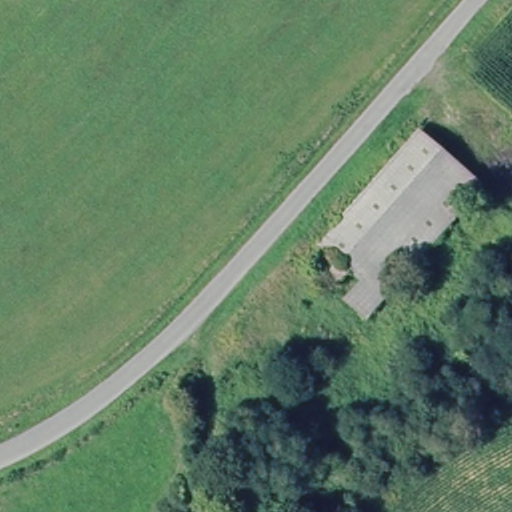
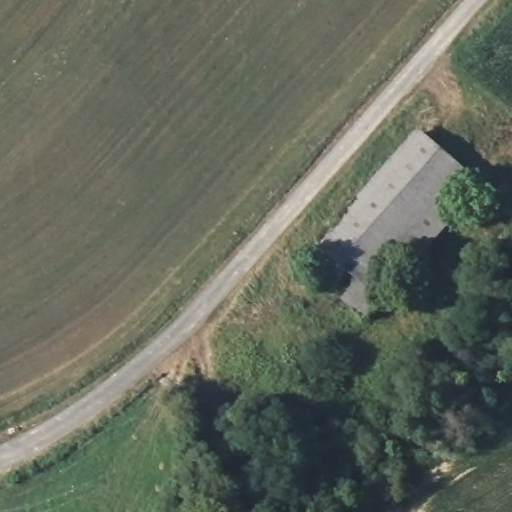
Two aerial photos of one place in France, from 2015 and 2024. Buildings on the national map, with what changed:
unchanged [(481,182),(377,308),(357,293),(367,282),(351,269),(340,279),(326,267),(336,257),(322,243),(414,132),(481,182)]

